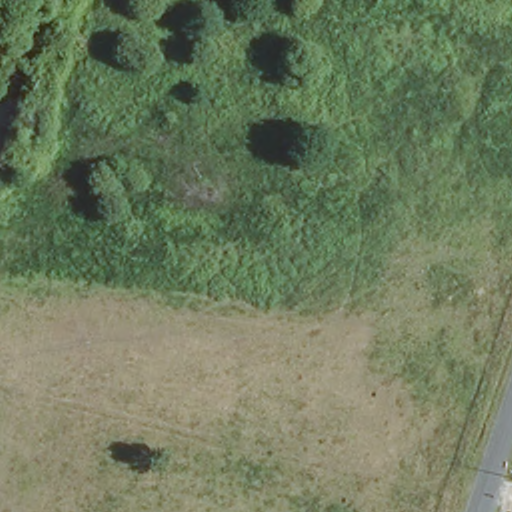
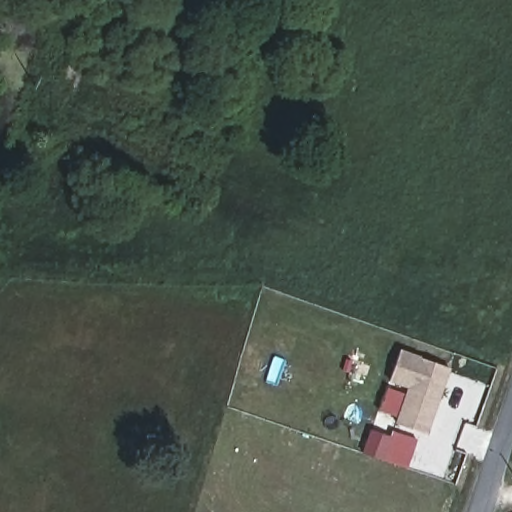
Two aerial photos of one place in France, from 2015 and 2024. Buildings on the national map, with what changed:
new [(389,380),(400,349),(450,367),(427,434),(395,422),(407,386),(389,380)]
new [(361,452),(370,428),(390,436),(392,430),(418,440),(406,470),(384,461),(361,452)]

